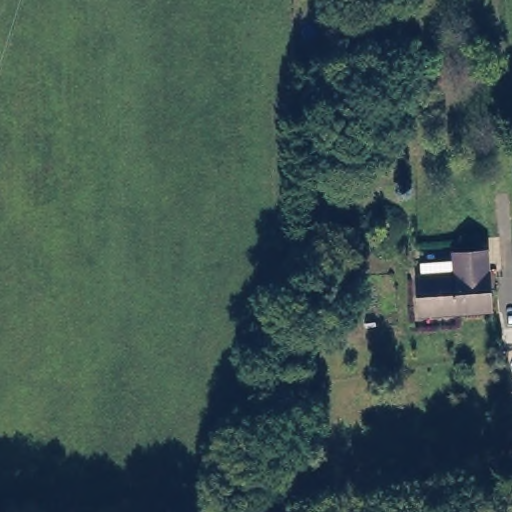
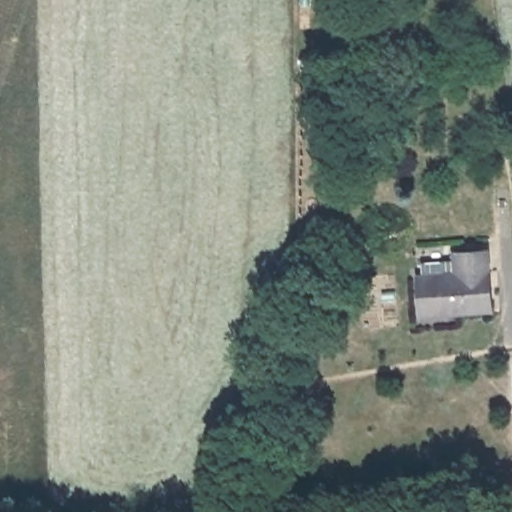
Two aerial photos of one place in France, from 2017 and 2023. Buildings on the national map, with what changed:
unchanged [(417,273),(422,273),(421,259),(457,256),(456,249),(485,248),(487,305),(420,309),(417,273)]

